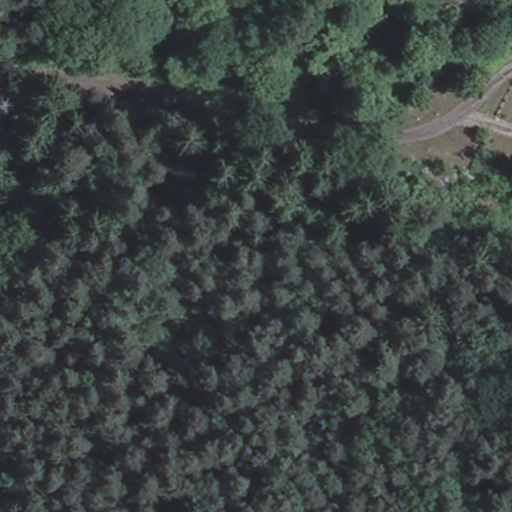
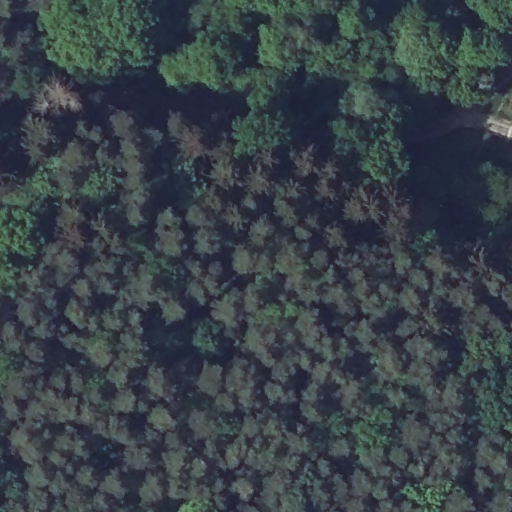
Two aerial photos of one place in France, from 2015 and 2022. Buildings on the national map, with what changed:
[]

